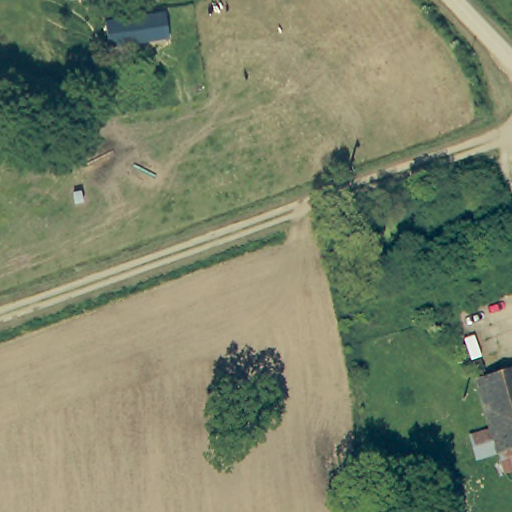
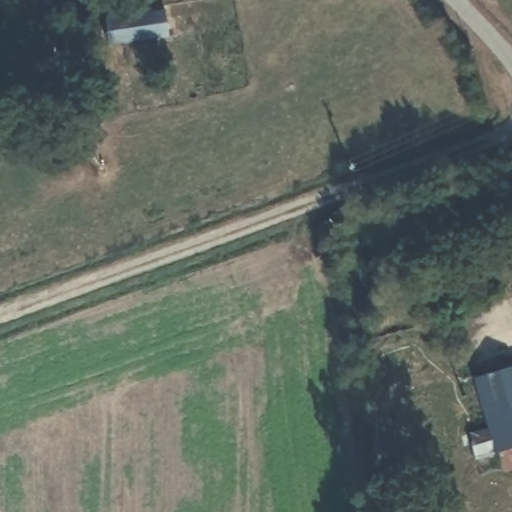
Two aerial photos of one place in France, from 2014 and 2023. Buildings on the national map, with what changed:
unchanged [(163,11),(167,38),(109,45),(105,21),(163,11)]
unchanged [(499,450),(477,456),(471,434),(489,429),(474,376),(512,367),(512,469),(505,471),(499,450)]

